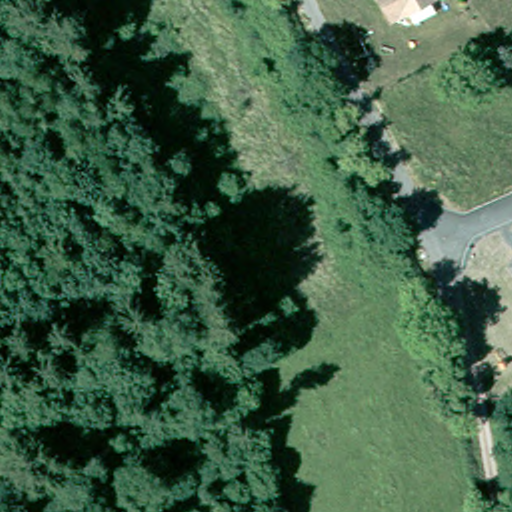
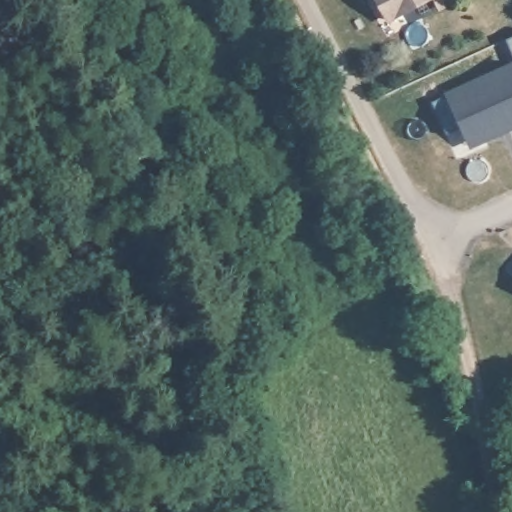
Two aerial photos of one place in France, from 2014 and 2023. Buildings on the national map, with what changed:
unchanged [(385,9),(380,0),(401,0),(388,7),(385,9)]
new [(512,131),(471,149),(444,93),(512,62),(512,131)]

